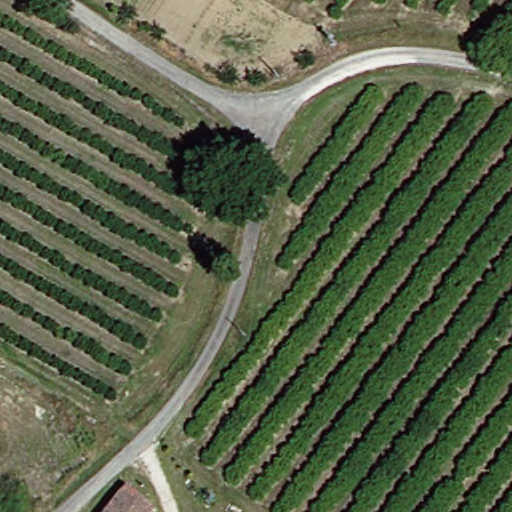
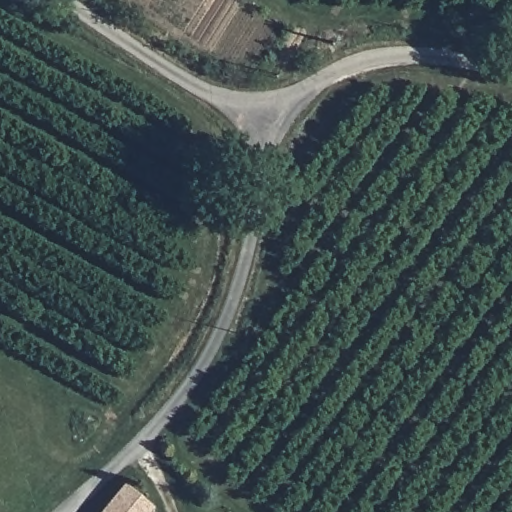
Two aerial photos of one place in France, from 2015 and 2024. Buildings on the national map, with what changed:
unchanged [(148,511),(147,512),(102,512),(119,489),(148,511)]

